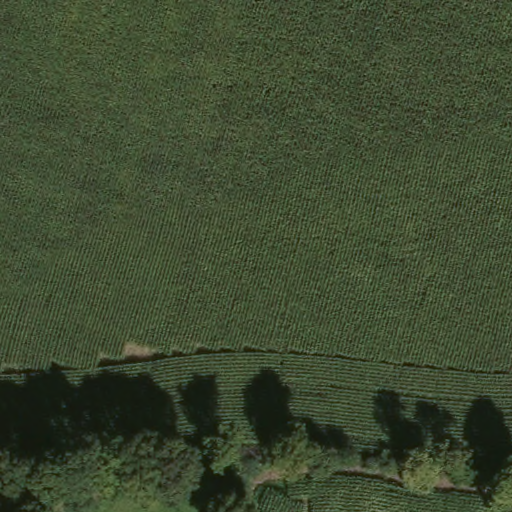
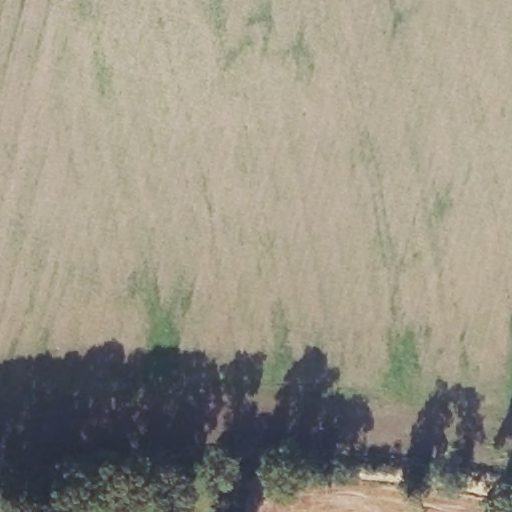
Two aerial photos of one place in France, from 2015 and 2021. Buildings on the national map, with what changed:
[]

